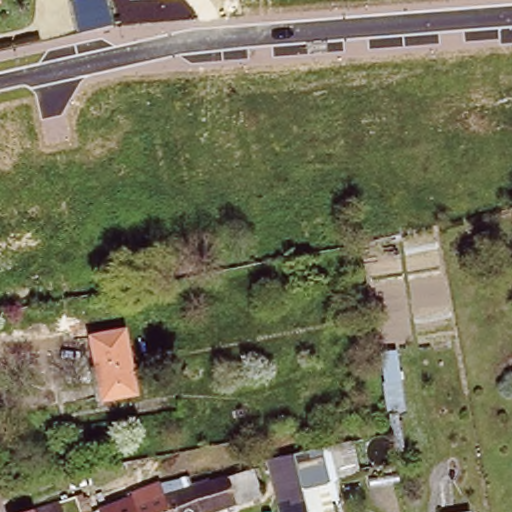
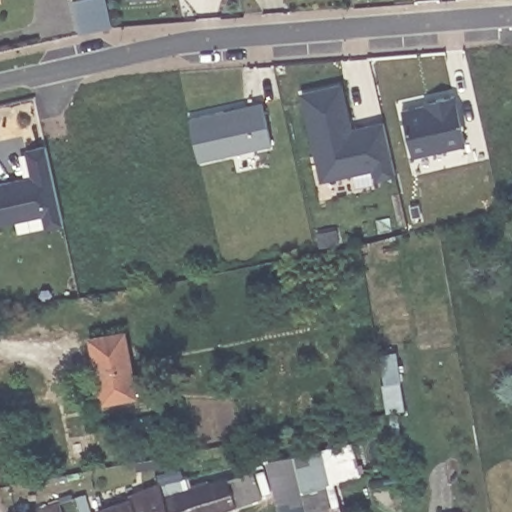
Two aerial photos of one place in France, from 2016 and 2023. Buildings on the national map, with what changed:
unchanged [(82,30),(77,0),(107,0),(111,24),(82,30)]
new [(376,182),(373,170),(352,174),(356,189),(328,196),(324,181),(321,182),(301,92),(343,82),(353,127),(386,120),(398,175),(376,182)]
new [(425,102),(437,99),(454,95),(466,144),(412,156),(402,111),(426,105),(425,102)]
new [(262,102),(271,143),(198,160),(188,118),(262,102)]
new [(32,176),(25,150),(45,145),(63,224),(44,228),(42,215),(0,224),(0,183),(32,176)]
unchanged [(118,329),(131,393),(98,399),(86,335),(118,329)]
unchanged [(321,447),(351,441),(358,474),(334,480),(341,512),(274,512),(262,461),(321,447)]
unchanged [(250,468),(259,495),(212,512),(171,512),(166,498),(250,468)]
unchanged [(99,508),(128,498),(127,494),(159,483),(166,498),(171,512),(100,512),(99,510),(99,508)]
unchanged [(25,512),(58,498),(62,512),(25,512)]

